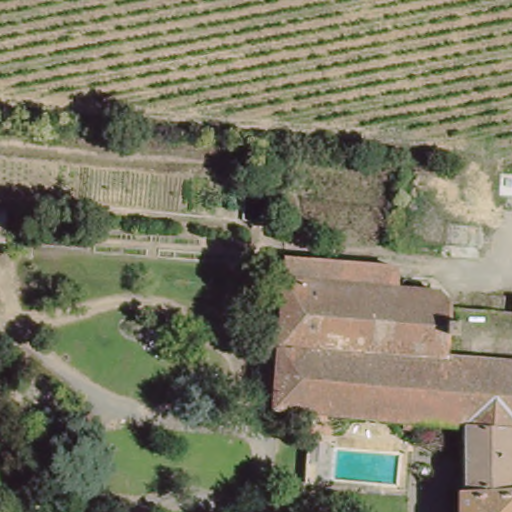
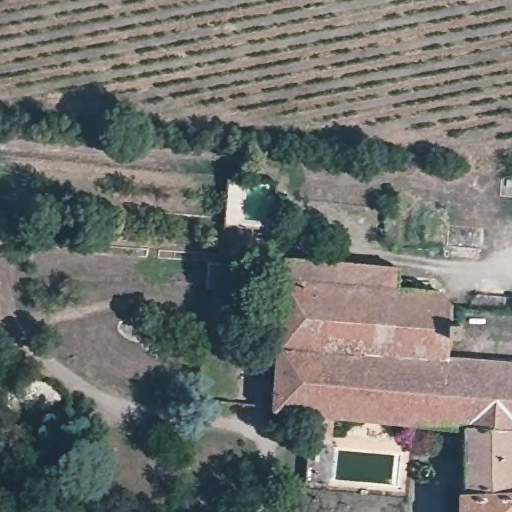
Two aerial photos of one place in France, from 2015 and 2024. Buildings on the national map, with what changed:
unchanged [(268,193),(288,194),(286,213),(266,211),(268,193)]
unchanged [(0,244),(0,220),(11,221),(9,245),(0,244)]
unchanged [(88,247),(43,241),(43,235),(31,234),(32,224),(89,230),(88,247)]
unchanged [(463,493),(463,431),(272,412),(281,282),(394,292),(435,295),(446,305),(444,356),(512,361),(512,512),(458,512),(459,493),(463,493)]

